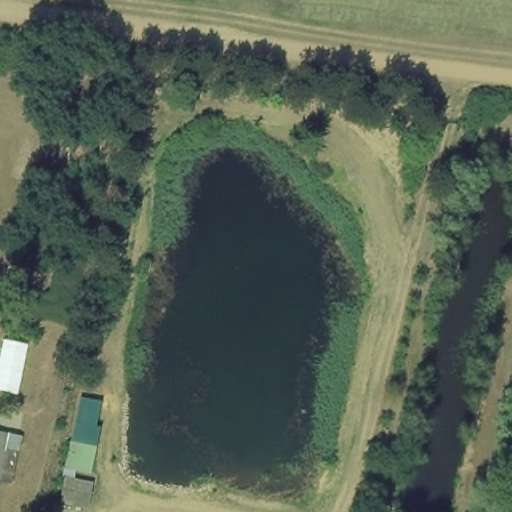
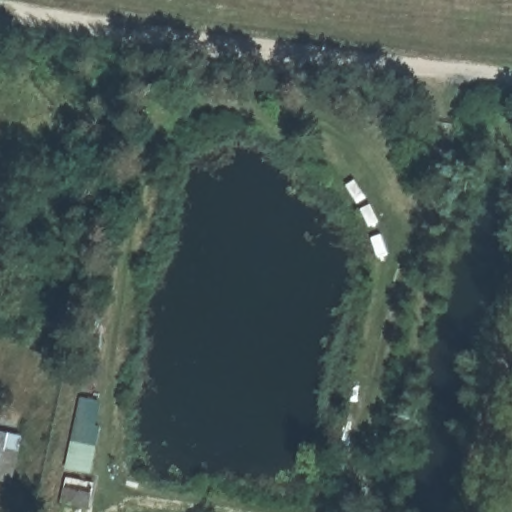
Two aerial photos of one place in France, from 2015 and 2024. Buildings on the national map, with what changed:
unchanged [(0,464),(0,431),(7,432),(0,464)]
unchanged [(97,472),(70,469),(72,440),(101,445),(97,472)]
unchanged [(92,507),(67,505),(72,480),(97,482),(92,507)]

